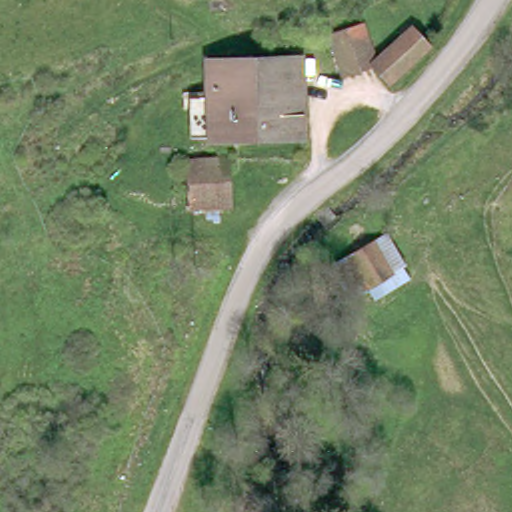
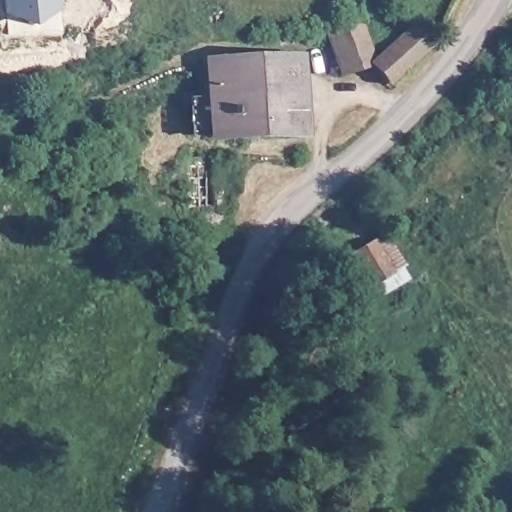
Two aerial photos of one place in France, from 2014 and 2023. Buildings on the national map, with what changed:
new [(31,26),(6,14),(6,0),(56,0),(56,12),(31,26)]
unchanged [(341,50),(336,31),(367,22),(378,58),(417,26),(434,46),(393,81),(379,63),(347,73),(346,68),(334,71),(329,53),(341,50)]
unchanged [(203,61),(295,55),(298,132),(214,137),(211,137),(208,120),(203,61)]
unchanged [(388,235),(413,278),(368,306),(340,261),(388,235)]

